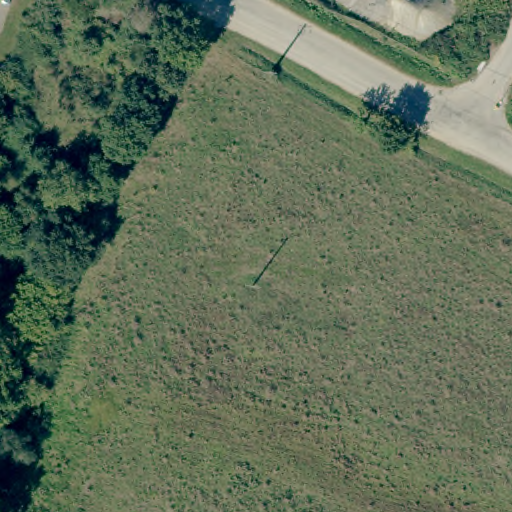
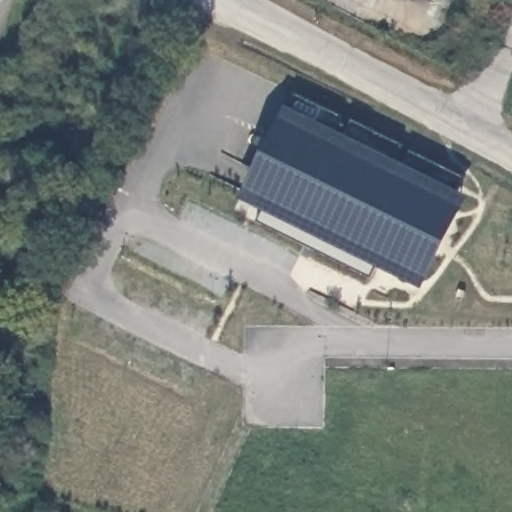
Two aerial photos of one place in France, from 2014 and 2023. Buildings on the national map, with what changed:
unchanged [(135,9),(117,0),(139,0),(135,9)]
new [(377,270),(373,279),(258,222),(262,213),(240,203),(283,110),(468,198),(422,292),(377,270)]
unchanged [(47,236),(0,215),(0,172),(62,199),(47,236)]

